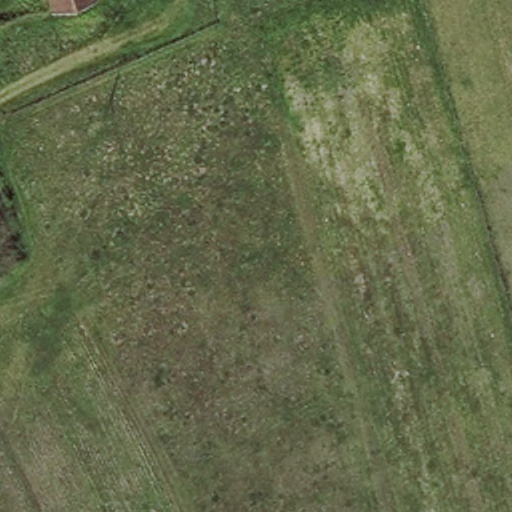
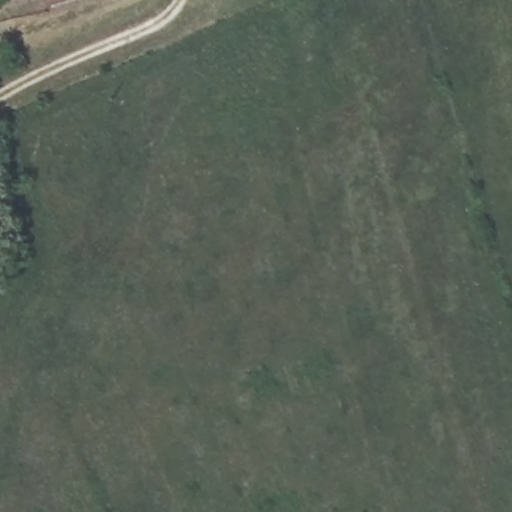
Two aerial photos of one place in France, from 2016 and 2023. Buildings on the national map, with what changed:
unchanged [(51,0),(72,0),(53,5),(51,0)]

